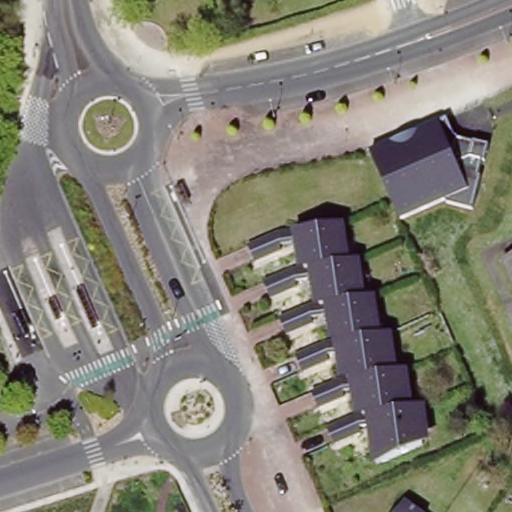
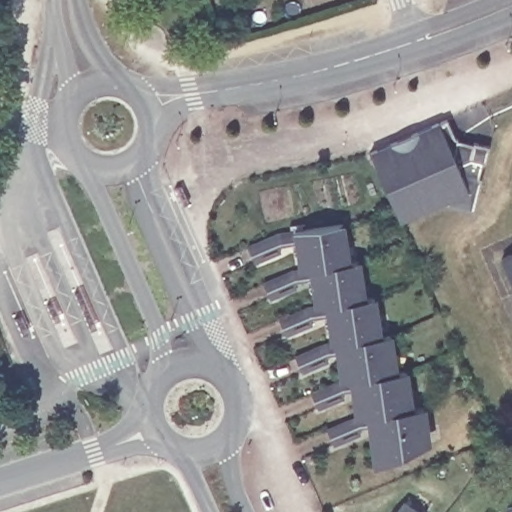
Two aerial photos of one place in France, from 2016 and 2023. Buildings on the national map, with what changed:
unchanged [(446,119),(455,139),(488,146),(473,210),(449,201),(401,220),(368,151),(446,119)]
unchanged [(293,249),(291,244),(274,246),(275,255),(249,263),(243,247),(275,235),(336,226),(339,242),(339,250),(334,251),(336,265),(299,270),(296,250),(293,249)]
unchanged [(512,258),(512,282),(503,261),(512,258)]
unchanged [(351,290),(353,301),(314,306),(311,286),(309,286),(308,280),(291,283),(291,290),(265,300),(259,284),(290,272),(299,270),(336,265),(352,263),(354,280),(354,285),(351,290)]
unchanged [(367,300),(369,312),(369,317),(371,321),(367,325),(369,339),(331,345),(328,325),(324,324),(323,319),(306,321),(306,326),(281,337),(274,320),(306,308),(314,306),(353,301),(367,300)]
unchanged [(332,357),(324,357),(324,363),(298,375),(291,360),(322,345),(331,345),(369,339),(383,336),(386,355),(386,361),(383,363),(384,375),(341,382),(341,371),(334,367),(332,357)]
unchanged [(349,393),(338,393),(338,400),(313,411),(306,395),(336,382),(341,382),(384,375),(399,373),(402,391),(401,395),(399,398),(401,412),(357,418),(356,408),(349,402),(349,393)]
unchanged [(420,427),(421,431),(417,437),(418,450),(376,466),(373,445),(366,441),(364,430),(354,431),(354,436),(328,447),(322,431),(349,420),(357,418),(401,412),(417,410),(420,427)]
unchanged [(422,512),(395,512),(405,499),(422,512)]

